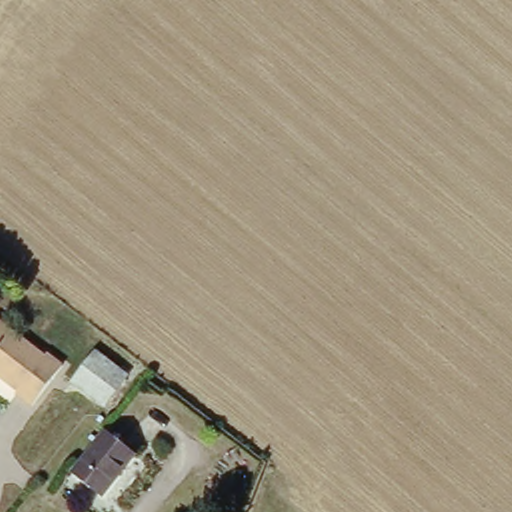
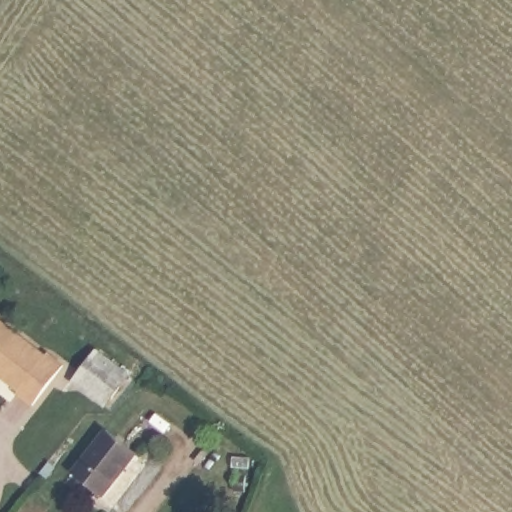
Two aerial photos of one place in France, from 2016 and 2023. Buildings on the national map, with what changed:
unchanged [(36,400),(0,373),(0,315),(66,365),(36,400)]
unchanged [(74,385),(98,349),(136,375),(110,410),(74,385)]
unchanged [(143,461),(105,501),(77,478),(116,437),(143,461)]

